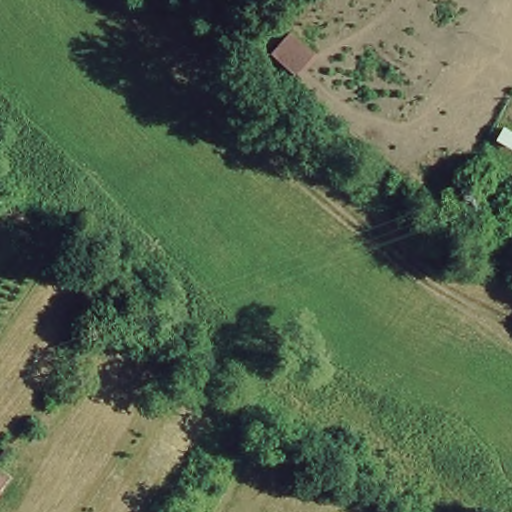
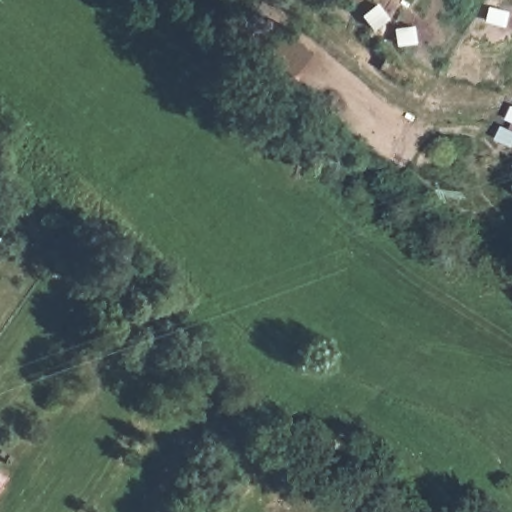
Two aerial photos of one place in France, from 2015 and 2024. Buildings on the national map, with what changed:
unchanged [(295,80),(269,59),(291,34),(316,54),(295,80)]

